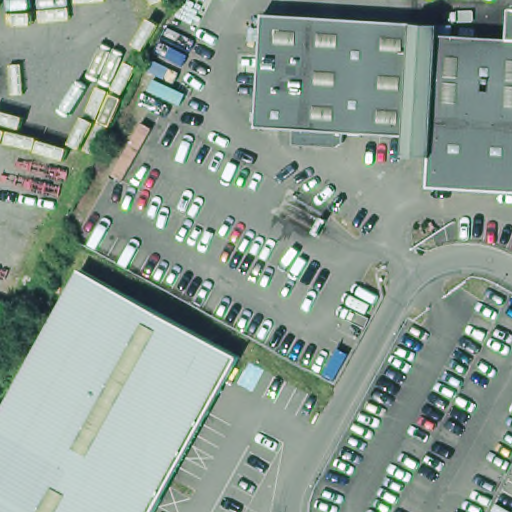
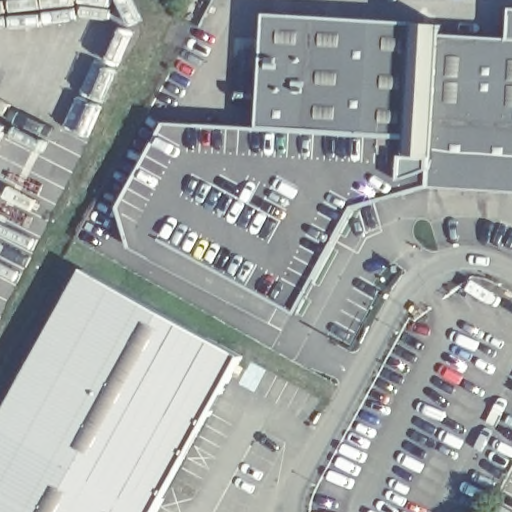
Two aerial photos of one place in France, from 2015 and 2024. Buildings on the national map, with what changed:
unchanged [(433,186),(435,156),(409,155),(410,135),(350,130),(349,141),(344,147),(298,144),(299,127),(262,125),(272,14),(433,22),(447,24),(447,33),(512,38),(512,192),(445,187),(433,186)]
unchanged [(157,512),(151,512),(0,427),(0,421),(83,269),(243,356),(157,512)]
unchanged [(0,512),(0,427),(151,512),(0,512)]

